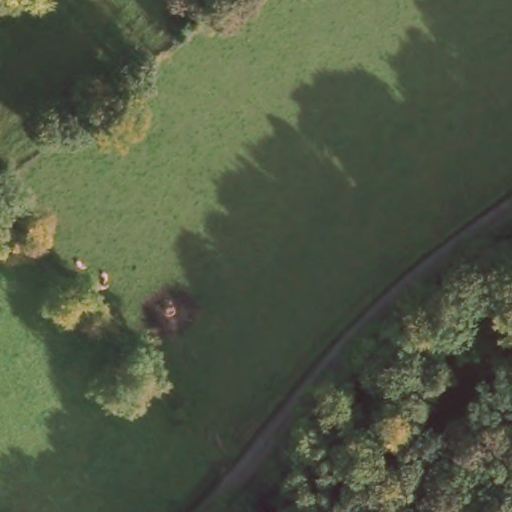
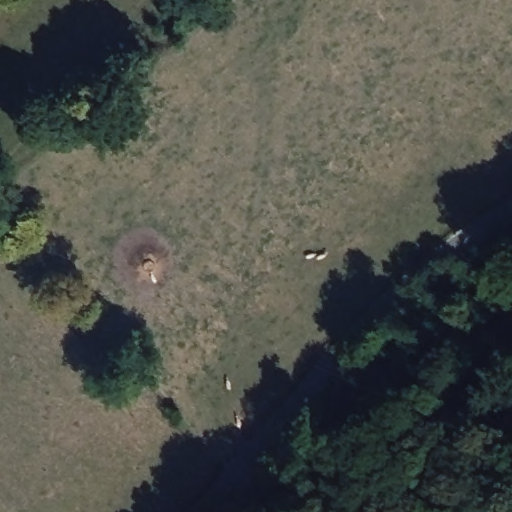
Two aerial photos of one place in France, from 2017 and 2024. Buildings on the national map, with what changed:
[]

